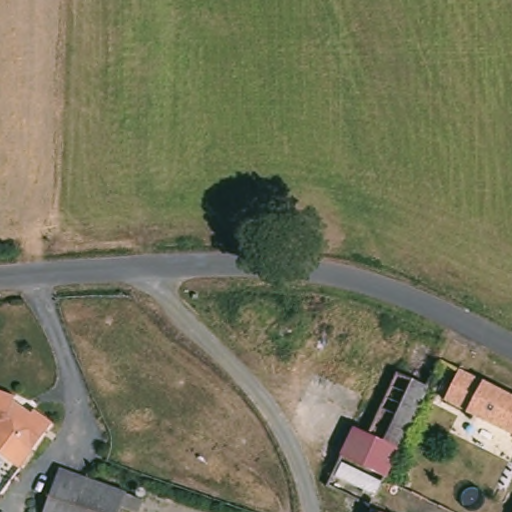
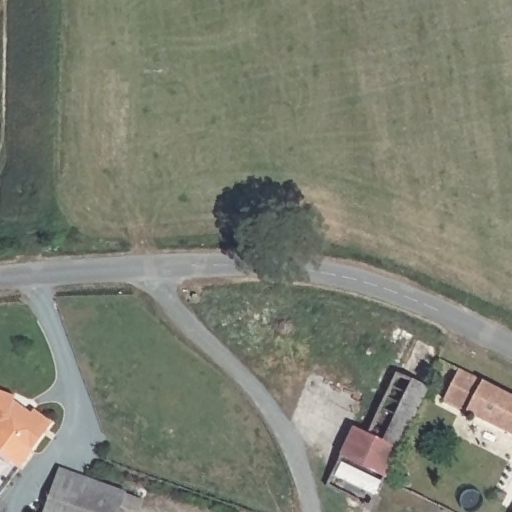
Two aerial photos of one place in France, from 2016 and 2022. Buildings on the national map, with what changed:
unchanged [(443,398),(453,369),(512,396),(512,430),(449,401),(443,398)]
unchanged [(372,428),(394,372),(424,384),(373,503),(328,486),(354,420),(372,428)]
unchanged [(14,402),(33,412),(37,406),(52,421),(28,450),(0,427),(0,390),(14,395),(14,402)]
unchanged [(112,485),(101,512),(45,512),(62,467),(112,485)]
unchanged [(144,496),(137,512),(122,505),(119,512),(101,512),(112,485),(144,496)]
unchanged [(504,497),(510,485),(512,486),(512,501),(504,497)]
unchanged [(392,512),(377,512),(378,507),(392,512)]
unchanged [(512,510),(512,512),(511,512),(512,510)]

